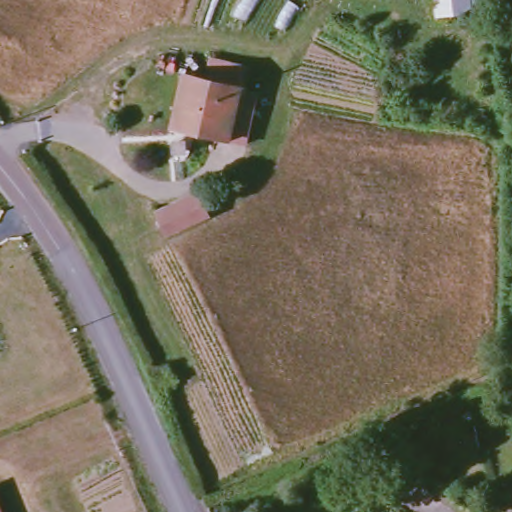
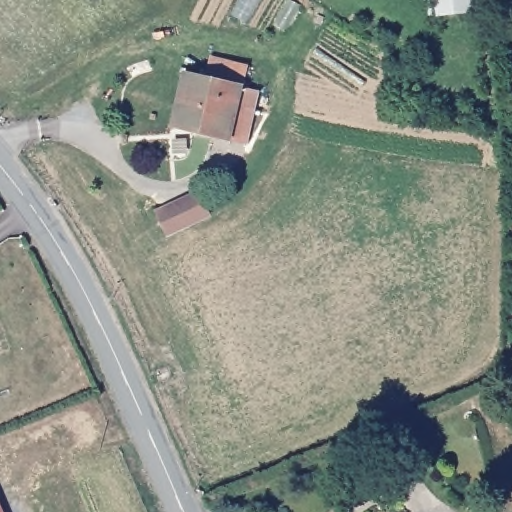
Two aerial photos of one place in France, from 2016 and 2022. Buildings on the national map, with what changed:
unchanged [(480,12),(447,16),(446,0),(479,0),(480,12)]
unchanged [(208,88),(213,68),(248,76),(245,91),(252,93),(262,95),(258,110),(250,144),(175,125),(184,94),(187,83),(208,88)]
unchanged [(197,193),(207,215),(165,232),(157,210),(197,193)]
unchanged [(0,512),(0,500),(5,512),(0,512)]

